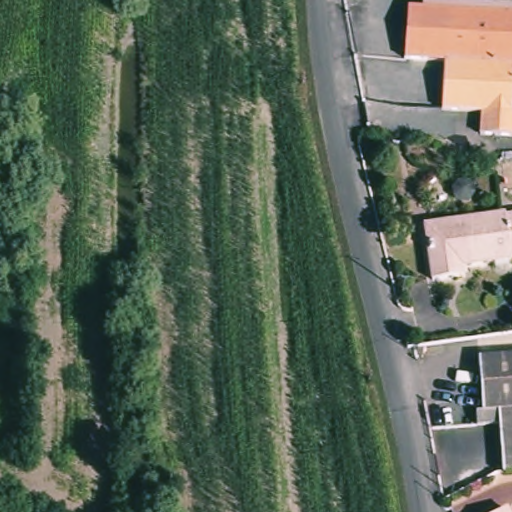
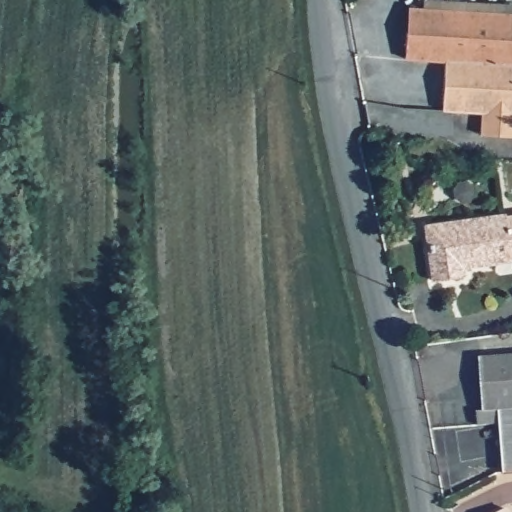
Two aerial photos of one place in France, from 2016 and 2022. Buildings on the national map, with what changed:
unchanged [(512,16),(512,67),(510,67),(440,66),(407,66),(409,15),(512,16)]
unchanged [(478,113),(439,113),(440,66),(510,67),(512,67),(512,132),(477,132),(478,113)]
unchanged [(453,200),(460,197),(468,200),(471,205),(468,213),(461,217),(454,214),(451,208),(453,200)]
unchanged [(508,259),(461,266),(462,278),(427,283),(422,227),(501,217),(503,220),(512,219),(512,255),(508,255),(508,259)]
unchanged [(497,414),(481,415),(478,361),(512,358),(512,479),(501,479),(497,414)]
unchanged [(505,510),(505,512),(502,512),(505,510)]

